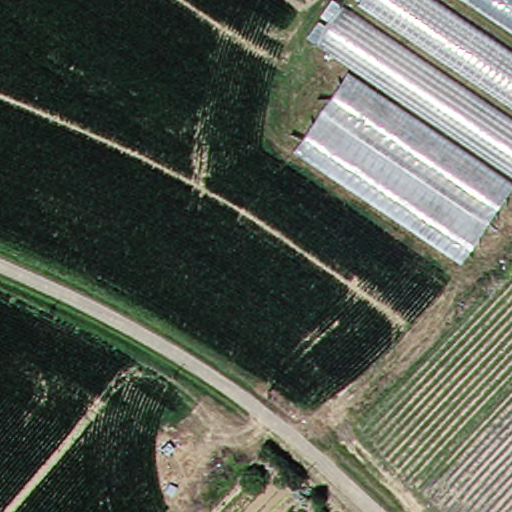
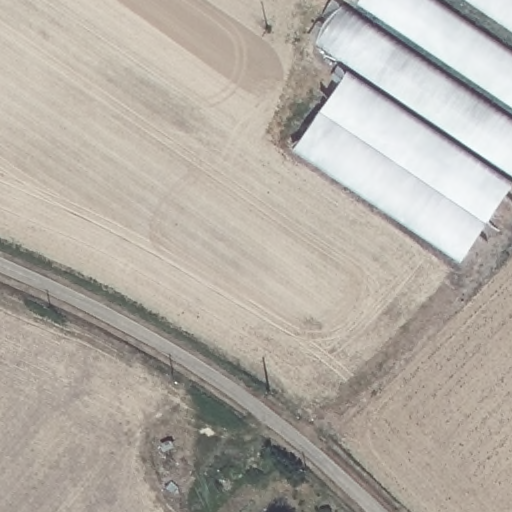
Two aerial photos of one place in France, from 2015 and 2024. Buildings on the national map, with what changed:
unchanged [(352,65),(315,39),(343,0),(352,6),(356,0),(512,0),(512,187),(462,258),(295,147),(352,65)]

